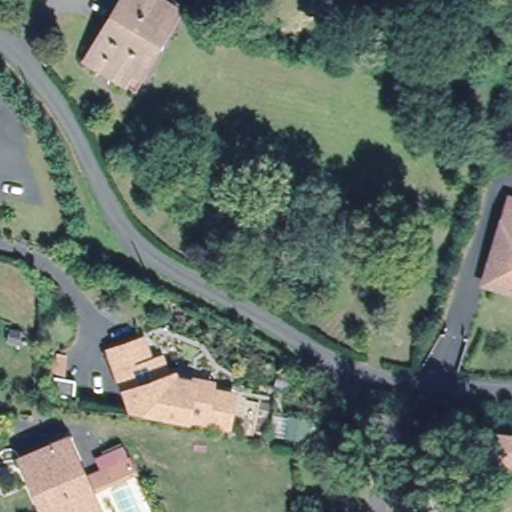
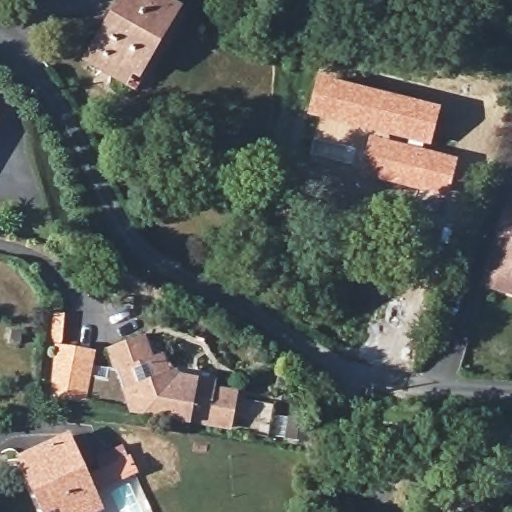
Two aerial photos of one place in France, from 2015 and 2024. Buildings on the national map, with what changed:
unchanged [(140,71),(131,86),(81,56),(114,0),(163,0),(171,4),(134,67),(140,71)]
new [(317,72),(442,107),(431,149),(458,157),(448,197),(358,175),(369,133),(306,115),(317,72)]
new [(315,139),(352,149),(349,162),(312,153),(315,139)]
unchanged [(485,278),(510,193),(512,194),(512,287),(485,278)]
new [(50,311),(65,312),(62,344),(96,350),(86,403),(49,398),(52,344),(48,344),(50,311)]
unchanged [(142,338),(150,361),(161,357),(172,386),(209,393),(210,390),(234,394),(229,426),(131,408),(111,349),(142,338)]
unchanged [(512,438),(512,465),(473,461),(476,435),(512,438)]
unchanged [(44,512),(30,481),(21,460),(67,439),(95,500),(99,509),(93,512),(44,512)]
unchanged [(129,450),(134,462),(101,477),(95,466),(129,450)]

